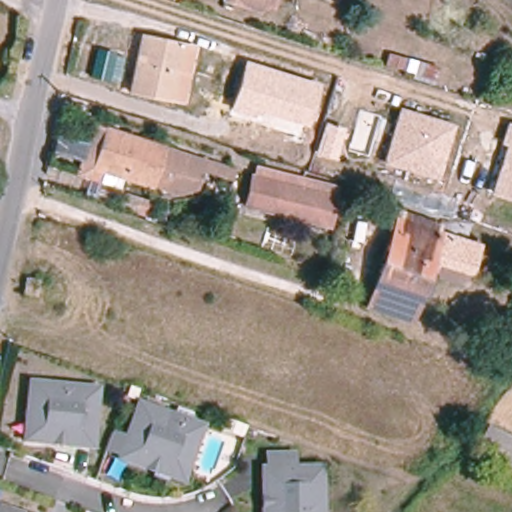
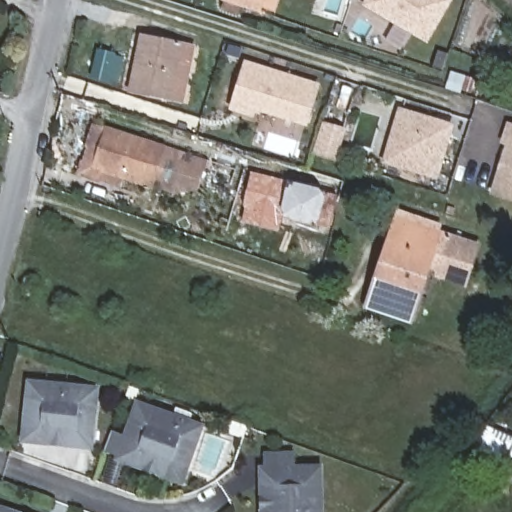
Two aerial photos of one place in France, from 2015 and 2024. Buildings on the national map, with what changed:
unchanged [(260,10),(230,0),(263,0),(260,10)]
new [(362,6),(366,0),(453,0),(427,44),(410,34),(400,50),(385,41),(393,26),(362,6)]
unchanged [(185,104),(173,101),(130,92),(141,34),(185,42),(196,45),(185,104)]
unchanged [(229,110),(245,60),(319,84),(307,126),(256,111),(255,119),(229,110)]
unchanged [(400,107),(455,124),(437,180),(383,164),(400,107)]
unchanged [(336,160),(315,155),(323,122),(345,128),(336,160)]
unchanged [(500,143),(507,122),(512,124),(512,201),(490,195),(505,145),(500,143)]
unchanged [(232,180),(199,170),(192,191),(176,195),(154,187),(152,186),(152,187),(94,170),(94,169),(80,164),(92,123),(107,127),(165,145),(165,146),(202,159),(235,170),(232,180)]
unchanged [(247,207),(254,175),(256,176),(258,168),(338,187),(335,196),(329,227),(247,207)]
unchanged [(442,230),(441,232),(428,270),(413,316),(371,302),(400,216),(442,230)]
unchanged [(441,232),(442,232),(481,244),(468,285),(428,270),(441,232)]
unchanged [(28,278),(40,280),(35,295),(25,292),(28,278)]
unchanged [(92,450),(37,444),(26,442),(33,385),(45,387),(99,393),(92,450)]
unchanged [(182,481),(171,477),(120,458),(140,404),(191,423),(202,428),(182,481)]
unchanged [(492,430),(512,439),(512,476),(478,460),(492,430)]
unchanged [(320,471),(320,512),(263,512),(263,472),(320,471)]
unchanged [(9,512),(2,512),(3,510),(9,512)]

